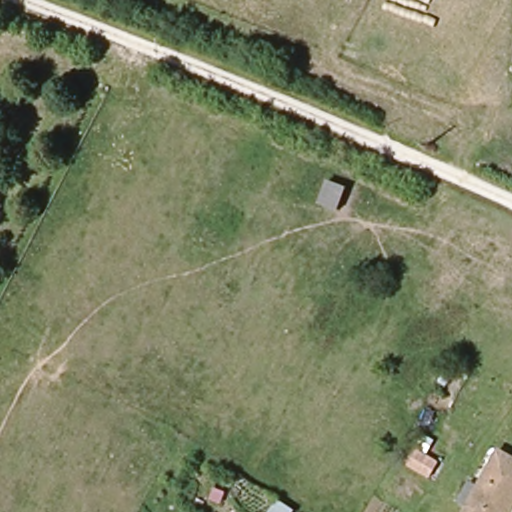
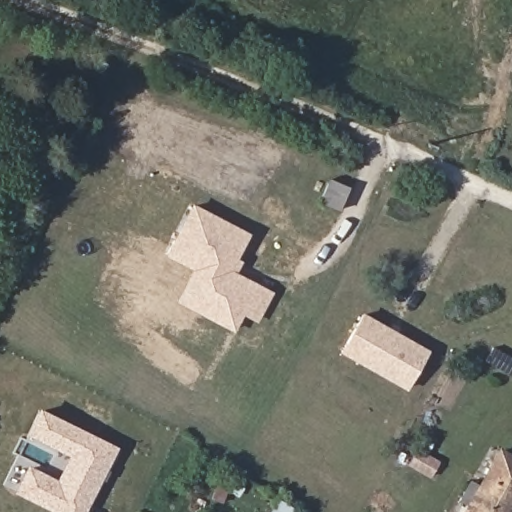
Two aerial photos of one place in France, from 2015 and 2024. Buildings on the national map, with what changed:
demolished [(512,63),(512,66),(511,65),(512,63)]
demolished [(511,168),(512,165),(512,169),(511,168)]
new [(327,178),(349,185),(341,210),(319,204),(327,178)]
new [(274,292),(258,323),(242,315),(234,332),(175,302),(191,270),(164,255),(191,202),(249,233),(236,258),(240,261),(236,272),(274,292)]
demolished [(440,321),(421,309),(439,263),(462,269),(440,321)]
new [(342,353),(361,314),(427,350),(406,389),(342,353)]
new [(53,512),(12,493),(26,464),(56,479),(68,455),(25,435),(38,408),(117,447),(84,512),(53,512)]
unchanged [(395,463),(402,449),(425,461),(417,474),(395,463)]
unchanged [(512,461),(512,500),(506,512),(463,512),(497,452),(512,461)]

